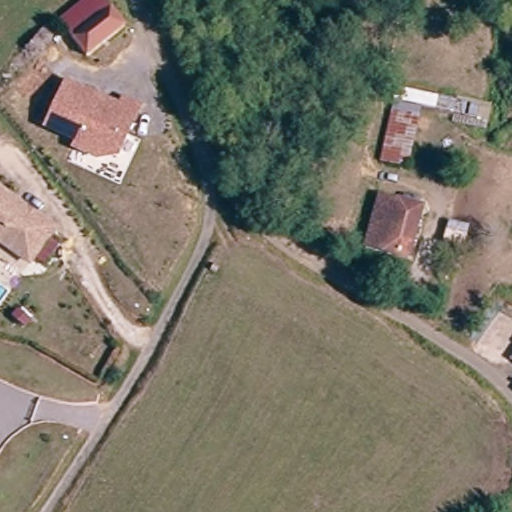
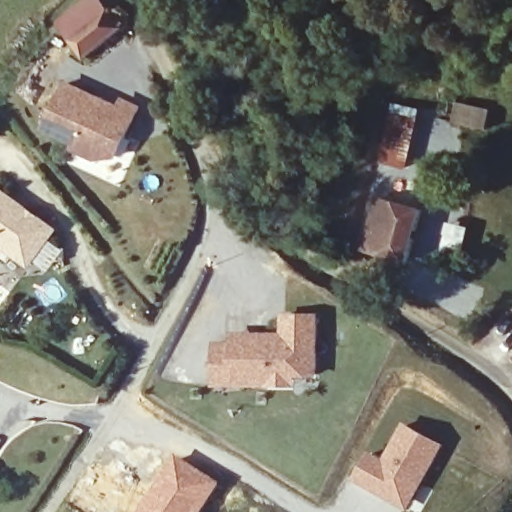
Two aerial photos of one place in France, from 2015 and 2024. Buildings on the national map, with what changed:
unchanged [(109,5),(118,18),(126,29),(124,31),(89,62),(64,35),(90,9),(83,1),(84,0),(115,0),(111,4),(109,5)]
unchanged [(120,160),(99,160),(71,149),(74,141),(45,129),(67,80),(120,105),(125,95),(144,105),(120,160)]
unchanged [(413,109),(403,161),(379,156),(391,103),(413,109)]
unchanged [(34,264),(0,241),(0,181),(65,227),(34,264)]
unchanged [(415,205),(400,256),(361,246),(373,194),(415,205)]
new [(232,343),(232,332),(282,334),(281,313),(320,312),(321,378),(297,378),(298,388),(215,386),(215,343),(232,343)]
unchanged [(511,353),(512,352),(512,354),(511,353)]
new [(446,445),(410,510),(352,481),(369,451),(383,459),(405,422),(446,445)]
new [(175,455),(222,484),(204,512),(140,512),(175,455)]

